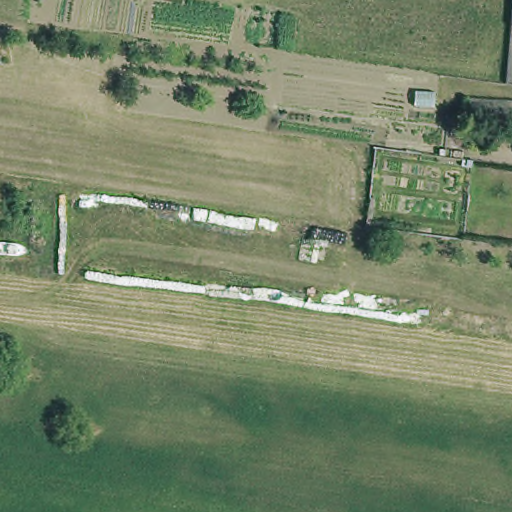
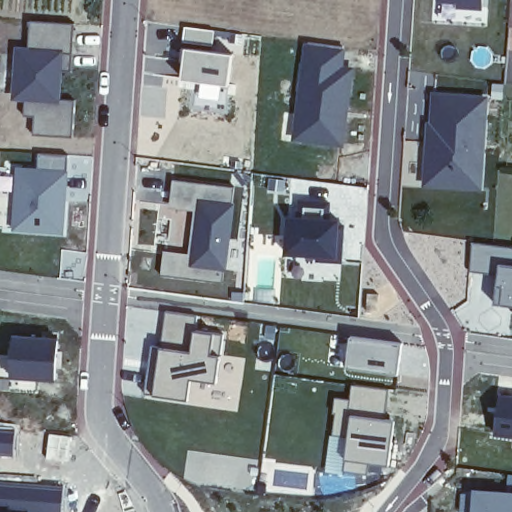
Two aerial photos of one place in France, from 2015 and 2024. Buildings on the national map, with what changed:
new [(484,8),(435,7),(435,0),(485,0),(484,8)]
new [(29,50),(31,20),(74,24),(76,23),(73,72),(60,71),(59,98),(77,99),(74,136),(34,134),(35,115),(25,115),(26,96),(16,96),(20,49),(29,50)]
new [(214,31),(213,45),(182,43),(184,28),(214,31)]
new [(340,69),(351,70),(344,146),(304,141),(304,120),(299,120),(305,44),(340,46),(340,69)]
new [(177,82),(180,50),(227,54),(225,86),(177,82)]
new [(465,187),(427,184),(430,140),(433,141),(436,95),(487,99),(482,162),(480,187),(465,187)]
new [(64,234),(11,231),(15,169),(37,169),(37,155),(65,155),(65,171),(64,234)]
new [(225,270),(188,265),(195,201),(232,205),(225,270)]
new [(315,263),(316,258),(281,256),(282,216),(295,216),(295,202),(329,202),(329,217),(336,219),(337,225),(342,226),(340,263),(315,263)]
new [(474,242),(512,247),(512,306),(502,305),(505,280),(499,280),(499,275),(472,271),(474,242)]
new [(370,294),(380,295),(379,313),(368,312),(370,294)]
new [(52,381),(9,377),(7,338),(52,340),(52,381)]
new [(228,350),(221,385),(196,383),(192,403),(138,397),(147,338),(228,350)]
new [(401,375),(350,370),(352,340),(404,345),(401,375)]
new [(385,391),(384,420),(390,421),(385,465),(339,460),(342,413),(349,413),(351,386),(385,391)]
new [(492,436),(495,395),(512,398),(512,439),(492,436)]
new [(14,457),(0,456),(0,423),(17,424),(14,457)]
new [(64,484),(62,512),(36,512),(10,509),(0,509),(0,479),(8,479),(64,484)]
new [(473,512),(475,493),(512,496),(512,512),(473,512)]

